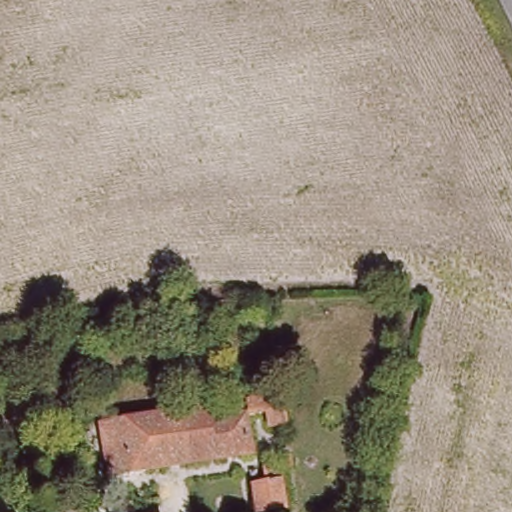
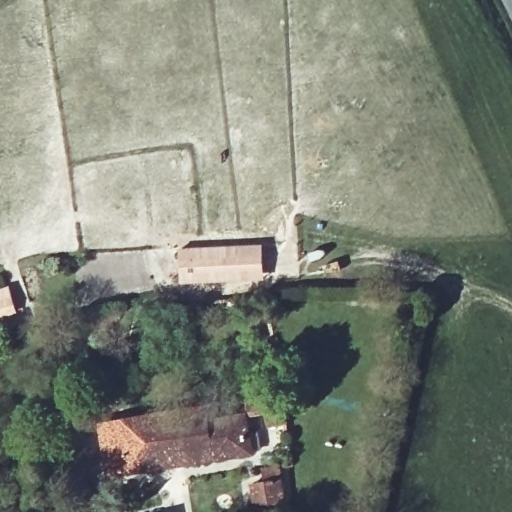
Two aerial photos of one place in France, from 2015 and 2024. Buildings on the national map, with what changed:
new [(263,243),(265,281),(181,285),(179,248),(263,243)]
unchanged [(271,423),(270,412),(251,414),(248,398),(285,391),(289,421),(271,423)]
unchanged [(214,415),(245,411),(252,448),(118,477),(105,424),(211,404),(214,415)]
unchanged [(258,512),(255,512),(250,481),(267,478),(282,477),(287,507),(258,512)]

